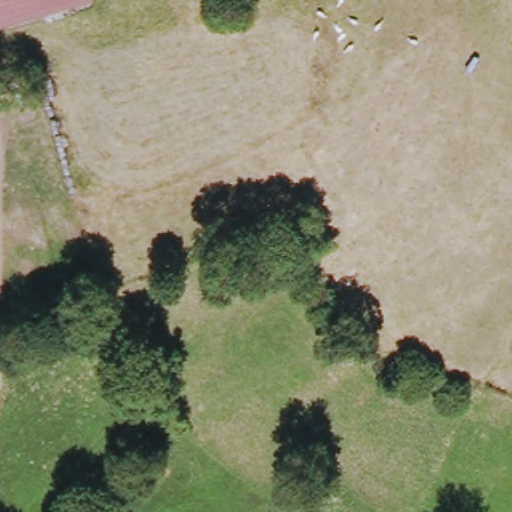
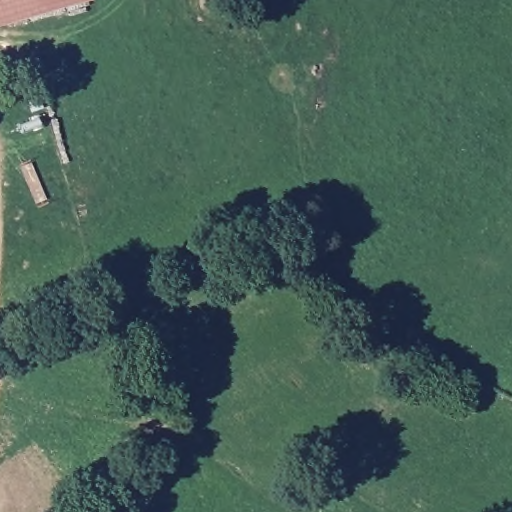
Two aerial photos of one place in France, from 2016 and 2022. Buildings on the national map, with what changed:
unchanged [(87,0),(0,27),(0,0),(87,0)]

